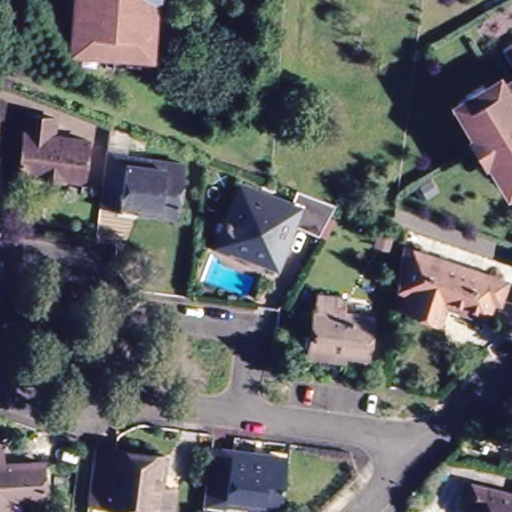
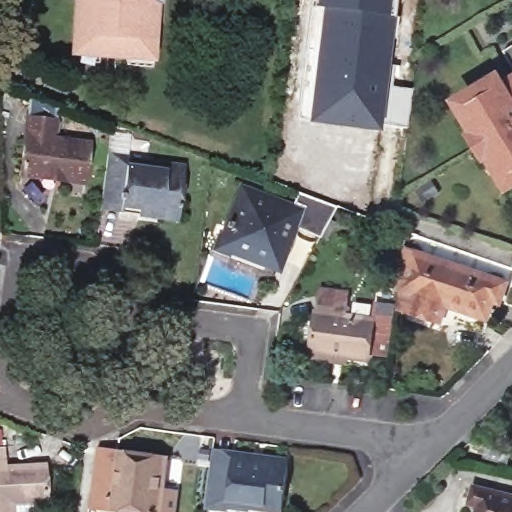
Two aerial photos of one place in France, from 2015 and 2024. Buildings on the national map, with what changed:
unchanged [(158,0),(154,56),(82,51),(75,50),(75,30),(78,0),(158,0)]
new [(377,132),(305,123),(306,119),(297,118),(312,5),(313,0),(394,0),(391,18),(395,18),(387,65),(394,65),(391,86),(412,89),(407,129),(378,125),(377,132)]
unchanged [(498,49),(512,40),(512,72),(498,49)]
unchanged [(483,151),(477,155),(467,137),(472,134),(460,114),(452,101),(462,95),(480,84),(483,91),(497,84),(498,85),(512,76),(512,179),(503,184),(495,172),(483,151)]
unchanged [(17,173),(24,115),(54,119),(51,135),(85,140),(79,180),(57,178),(40,175),(17,173)]
unchanged [(159,223),(159,222),(159,217),(157,217),(135,214),(97,209),(98,199),(104,153),(107,130),(123,132),(120,154),(145,158),(183,162),(182,171),(178,214),(177,224),(159,223)]
unchanged [(265,263),(223,248),(213,244),(216,235),(235,184),(287,203),(292,190),(299,193),(331,204),(317,230),(291,221),(277,258),(275,267),(265,263)]
unchanged [(435,319),(397,305),(405,247),(507,282),(500,303),(493,301),(487,319),(448,306),(442,321),(435,319)]
unchanged [(308,364),(309,357),(317,303),(345,306),(344,322),(371,327),(366,364),(344,361),(343,369),(308,364)]
unchanged [(8,463),(44,463),(44,497),(11,499),(11,512),(0,512),(0,440),(7,440),(8,463)]
unchanged [(212,444),(271,452),(271,459),(291,462),(284,510),(254,506),(252,511),(230,508),(230,511),(204,506),(210,460),(212,444)]
unchanged [(174,512),(141,512),(90,504),(96,449),(100,447),(168,455),(165,476),(164,488),(171,489),(177,489),(174,512)]
unchanged [(470,503),(462,501),(468,479),(512,489),(512,512),(468,512),(470,503)]

